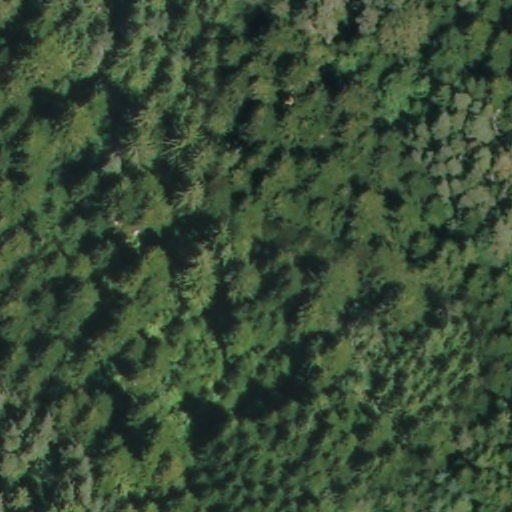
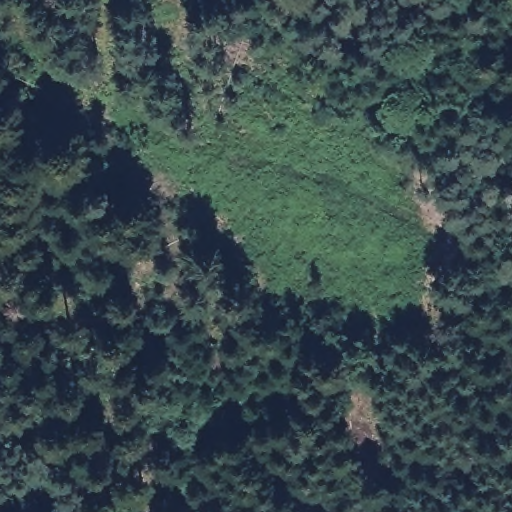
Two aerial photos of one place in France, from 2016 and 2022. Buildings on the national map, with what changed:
[]

